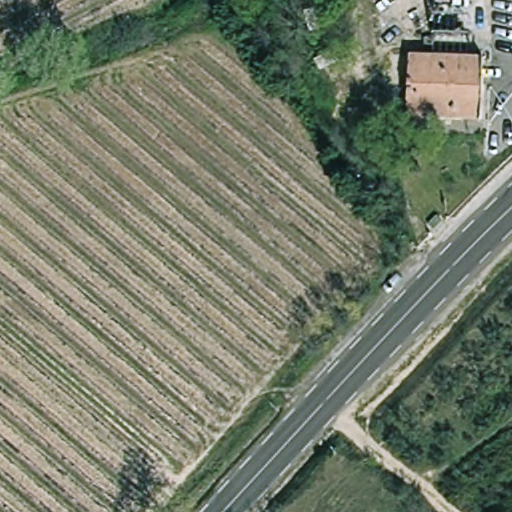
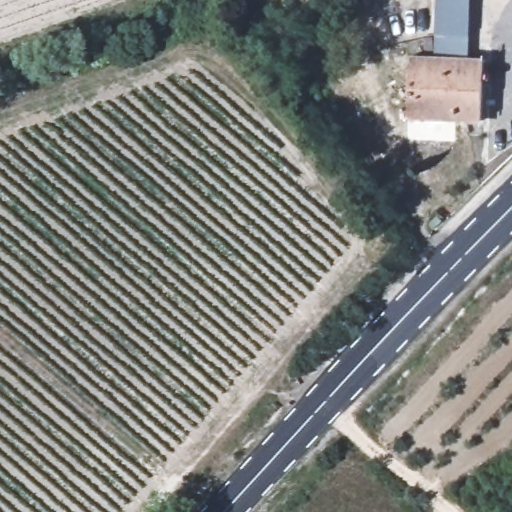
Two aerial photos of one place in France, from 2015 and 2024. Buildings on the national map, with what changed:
new [(436,0),(472,0),(469,60),(434,60),(436,0)]
unchanged [(487,61),(482,120),(408,117),(412,59),(487,61)]
unchanged [(429,226),(435,233),(427,241),(420,235),(429,226)]

